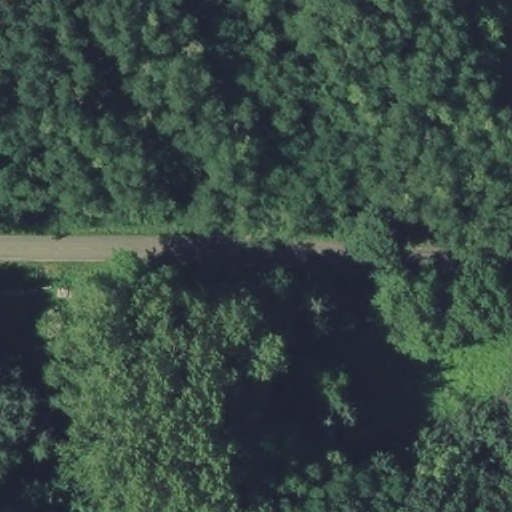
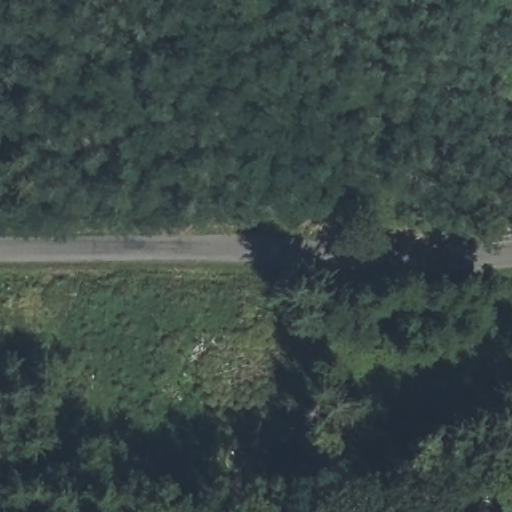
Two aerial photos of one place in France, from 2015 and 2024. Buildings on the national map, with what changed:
unchanged [(58,305),(56,284),(84,283),(85,305),(58,305)]

